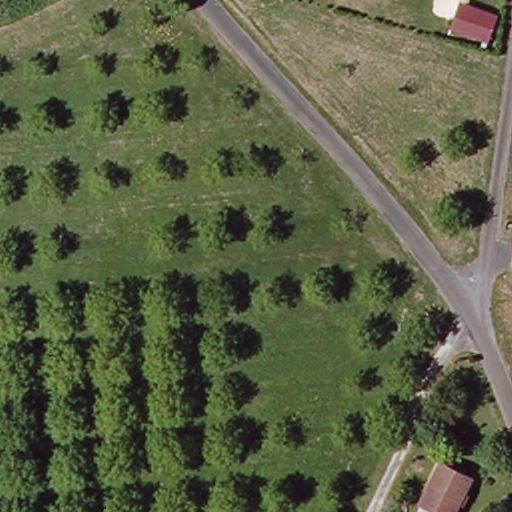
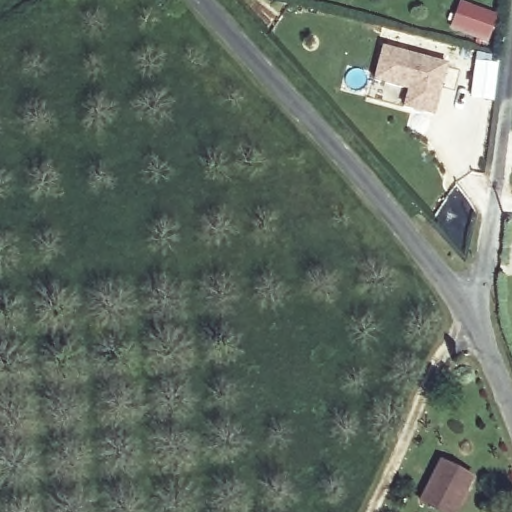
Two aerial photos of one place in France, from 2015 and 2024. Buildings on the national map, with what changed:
unchanged [(448,25),(457,4),(490,19),(483,39),(448,25)]
new [(434,118),(403,110),(408,90),(373,83),(381,46),(448,64),(434,118)]
new [(477,64),(498,67),(492,102),(471,99),(477,64)]
unchanged [(422,503),(442,462),(475,478),(459,512),(442,512),(422,503)]

